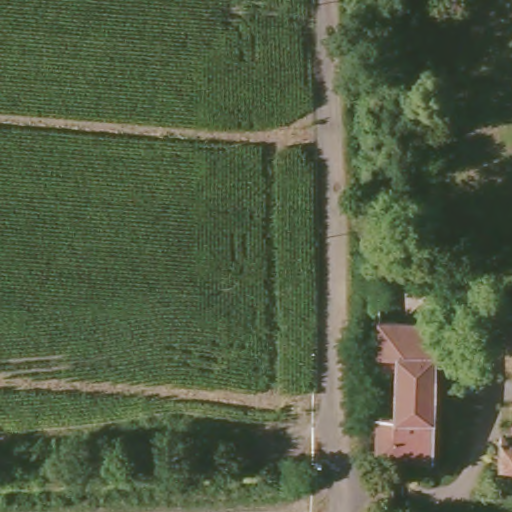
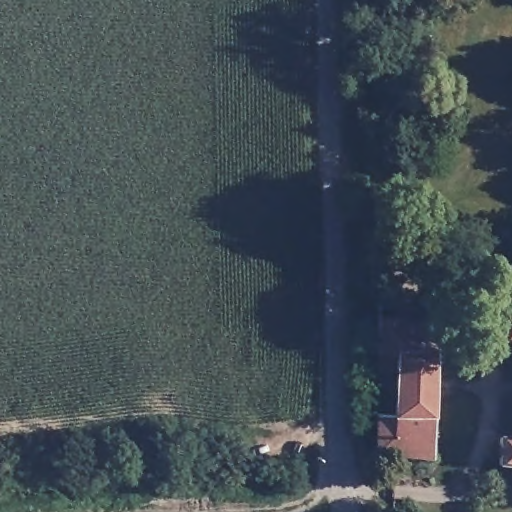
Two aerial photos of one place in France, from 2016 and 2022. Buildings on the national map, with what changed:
unchanged [(512,312),(512,342),(502,342),(504,312),(512,312)]
unchanged [(430,315),(427,479),(375,472),(374,460),(375,448),(375,438),(375,427),(375,417),(375,406),(376,394),(376,383),(376,373),(377,362),(377,352),(376,342),(375,332),(375,322),(374,313),(430,315)]
unchanged [(500,467),(501,438),(512,438),(512,467),(500,467)]

